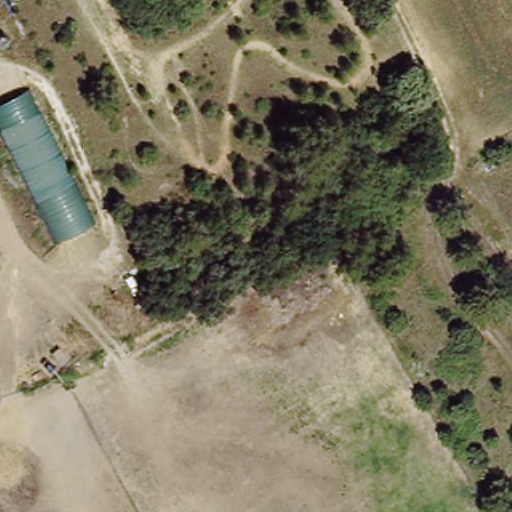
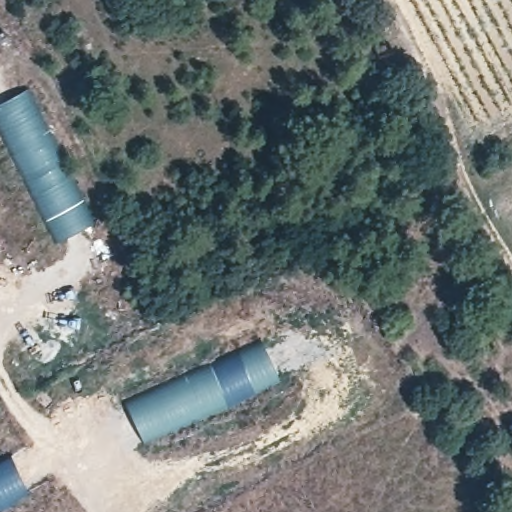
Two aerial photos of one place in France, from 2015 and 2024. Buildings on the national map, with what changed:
unchanged [(0,121),(0,100),(33,80),(97,221),(57,237),(0,121)]
new [(146,442),(125,401),(259,338),(279,380),(146,442)]
new [(0,510),(0,459),(10,453),(31,493),(0,510)]

